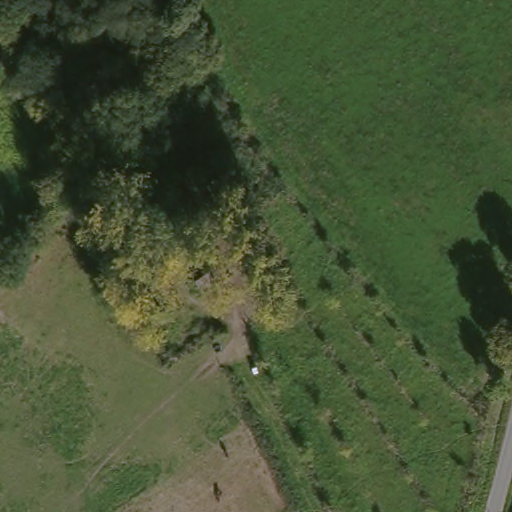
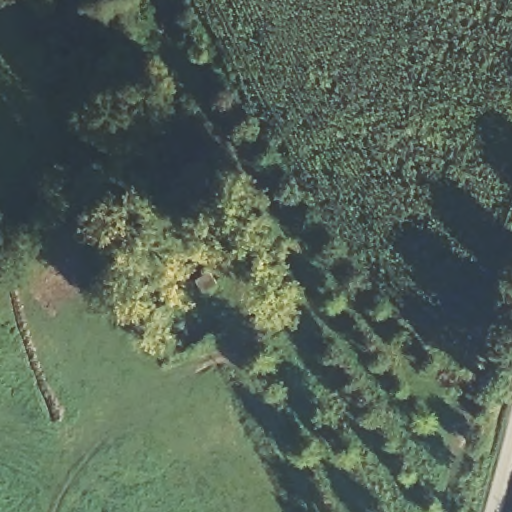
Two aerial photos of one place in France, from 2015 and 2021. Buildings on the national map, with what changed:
unchanged [(206,292),(204,293),(196,282),(209,272),(217,284),(206,292)]

